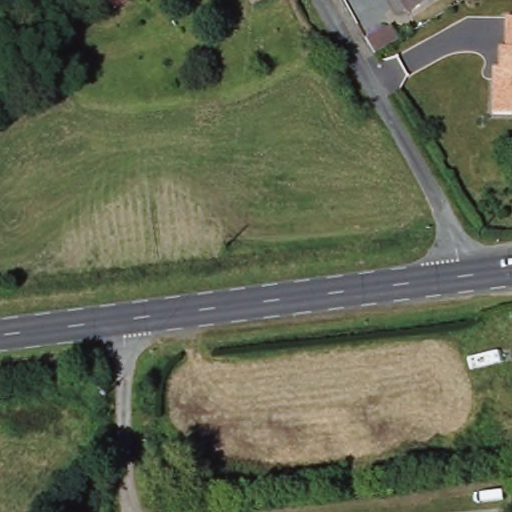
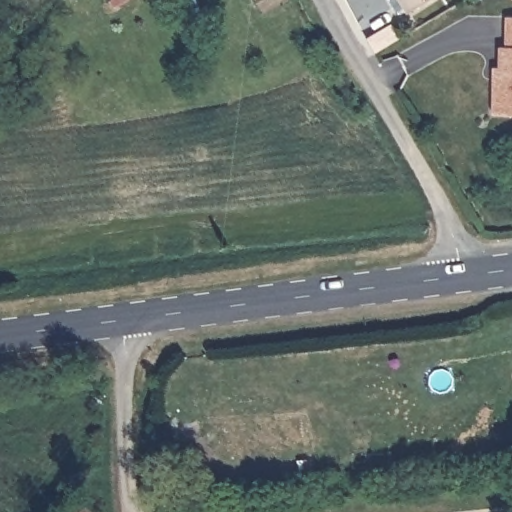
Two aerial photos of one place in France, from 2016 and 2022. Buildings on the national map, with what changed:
unchanged [(110,0),(131,0),(119,10),(110,1),(110,0)]
unchanged [(404,10),(399,0),(423,0),(404,10)]
unchanged [(509,15),(512,15),(512,112),(495,112),(496,79),(503,79),(503,44),(508,44),(509,15)]
unchanged [(367,42),(389,29),(398,41),(375,57),(367,42)]

